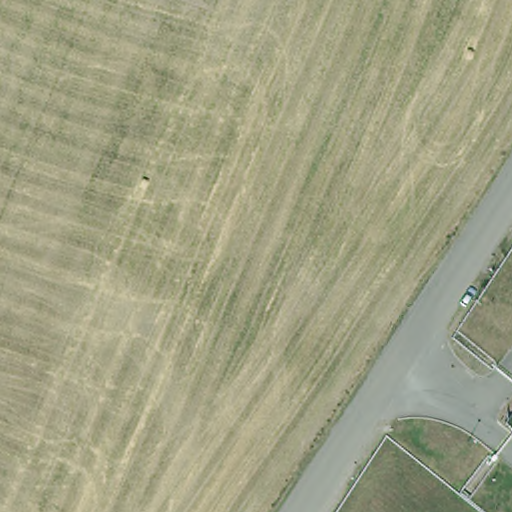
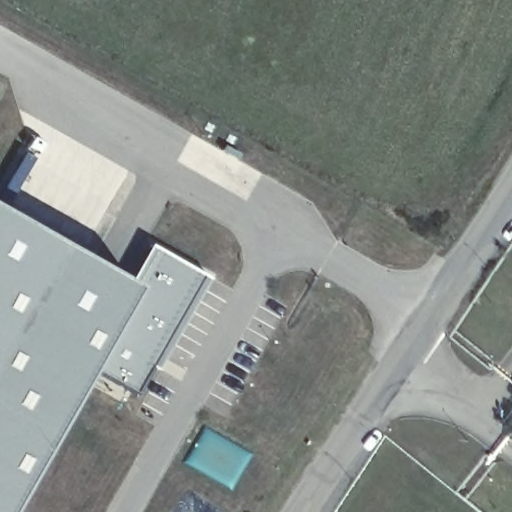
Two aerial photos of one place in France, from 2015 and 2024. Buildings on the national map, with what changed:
new [(135,281),(155,249),(211,281),(141,399),(96,374),(20,512),(0,512),(0,205),(135,281)]

